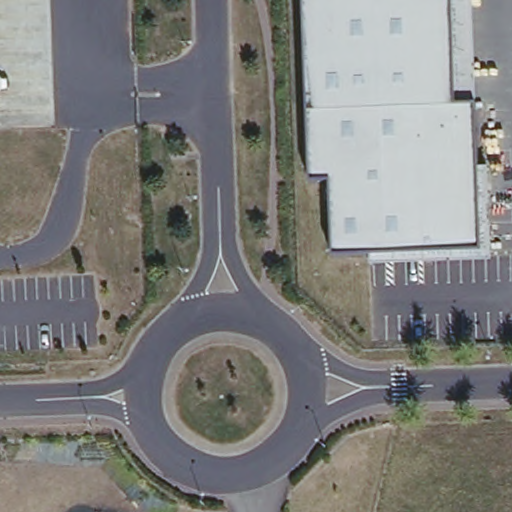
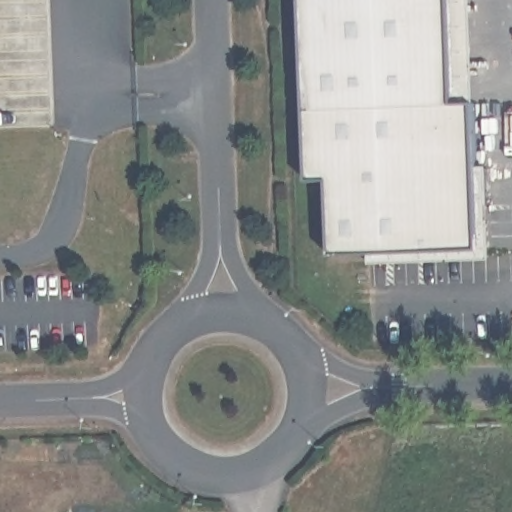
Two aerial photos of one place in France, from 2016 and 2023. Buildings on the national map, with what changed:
unchanged [(452,90),(452,104),(472,104),(476,166),(487,166),(491,260),(370,265),(368,247),(331,247),(328,176),(312,176),(304,0),(471,0),(473,89),(452,90)]

